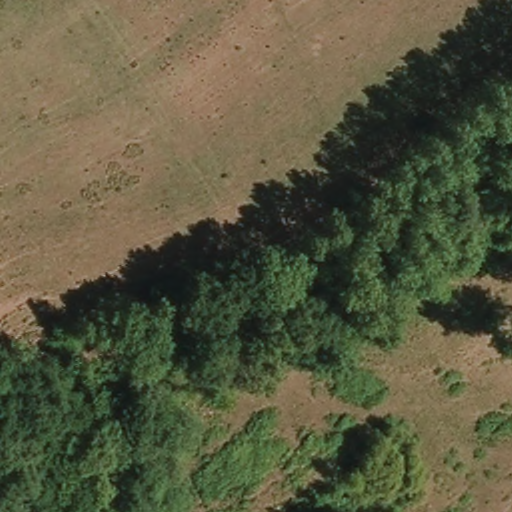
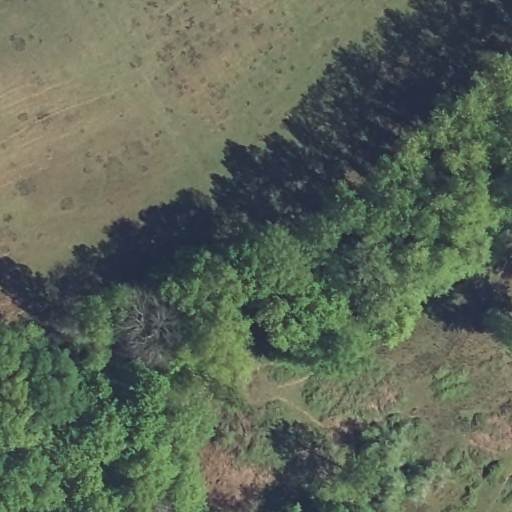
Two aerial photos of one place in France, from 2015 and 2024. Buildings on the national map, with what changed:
[]

